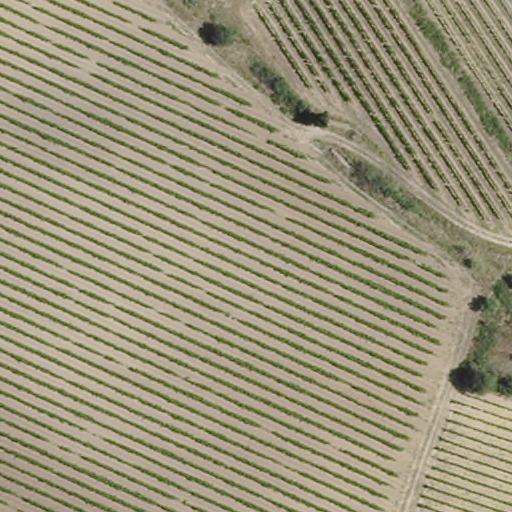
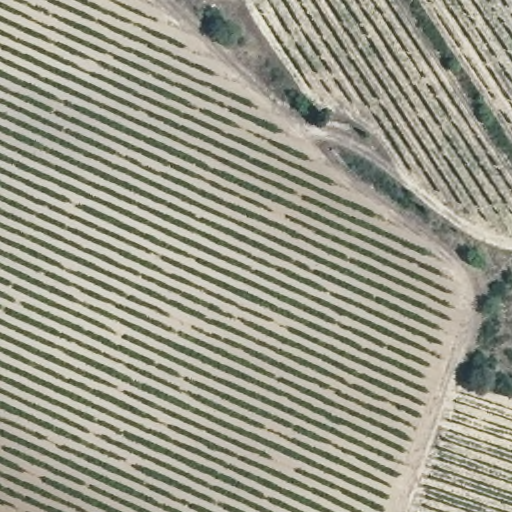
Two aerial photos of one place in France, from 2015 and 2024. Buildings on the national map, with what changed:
unchanged [(343,140),(360,159),(349,170),(333,150),(343,140)]

